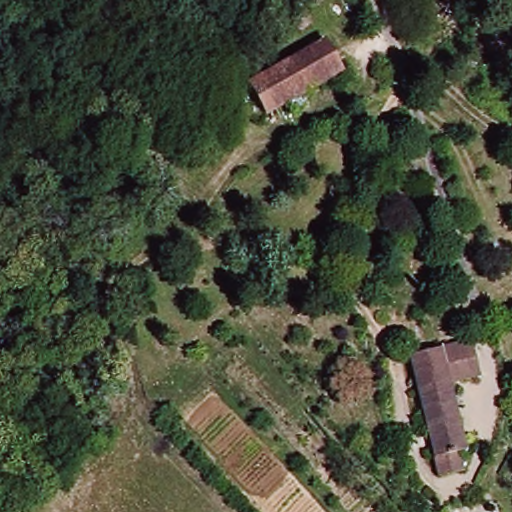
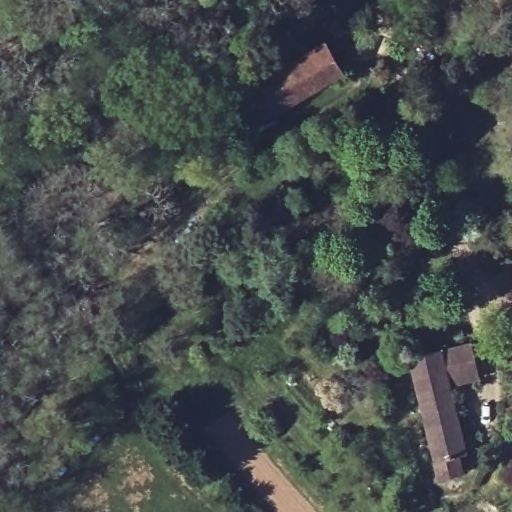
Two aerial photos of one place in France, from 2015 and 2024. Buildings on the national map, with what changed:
unchanged [(246,86),(321,43),(334,69),(336,73),(261,114),(246,86)]
unchanged [(433,461),(409,359),(467,345),(476,344),(484,379),(475,381),(449,385),(465,453),(459,455),(464,474),(436,480),(433,461)]

